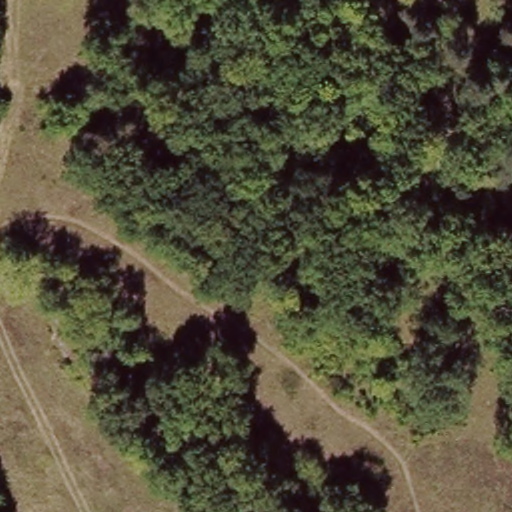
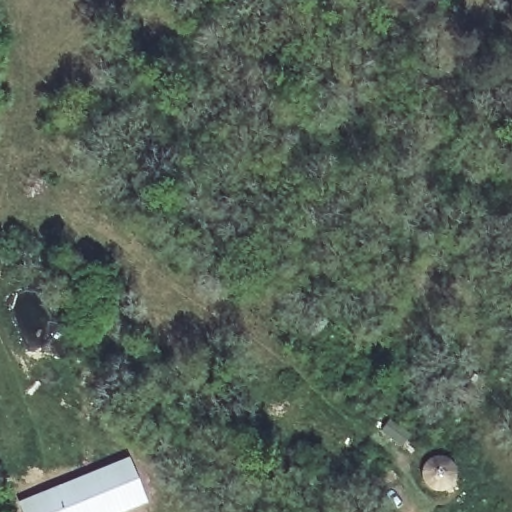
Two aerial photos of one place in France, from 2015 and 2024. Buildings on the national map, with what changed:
new [(129,455),(148,502),(123,512),(21,512),(16,501),(129,455)]

